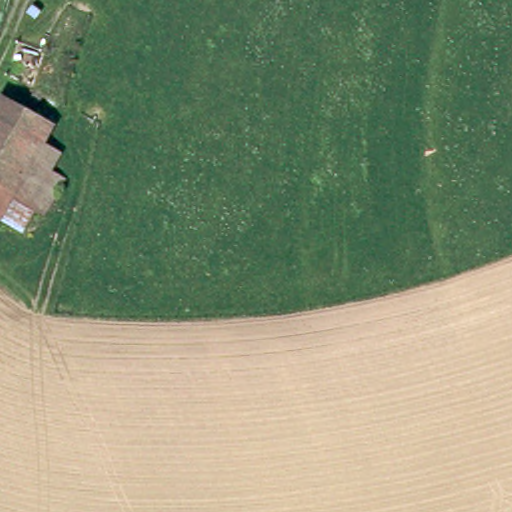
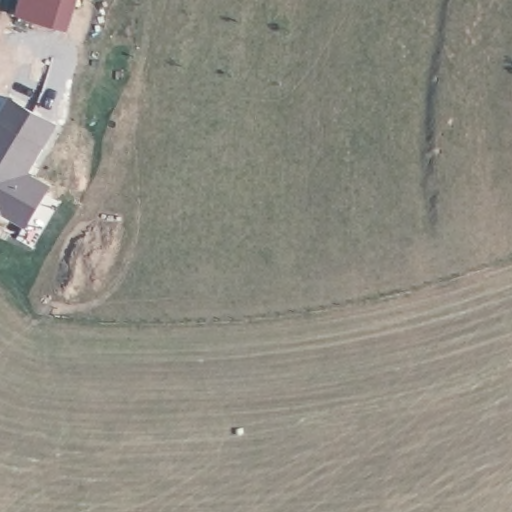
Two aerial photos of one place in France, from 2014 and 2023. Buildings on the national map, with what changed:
new [(15,14),(19,0),(77,0),(69,29),(15,14)]
unchanged [(6,220),(0,216),(0,107),(5,97),(55,125),(6,220)]

